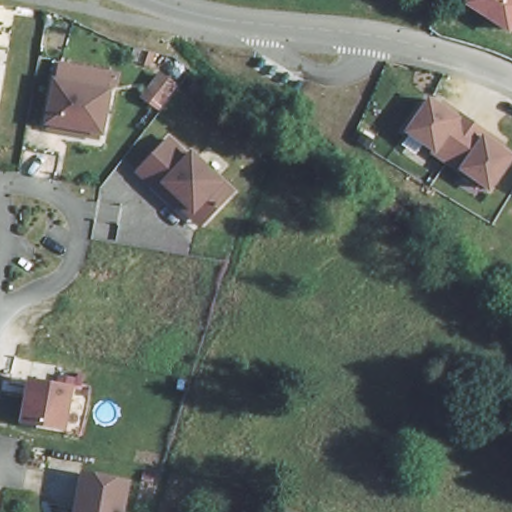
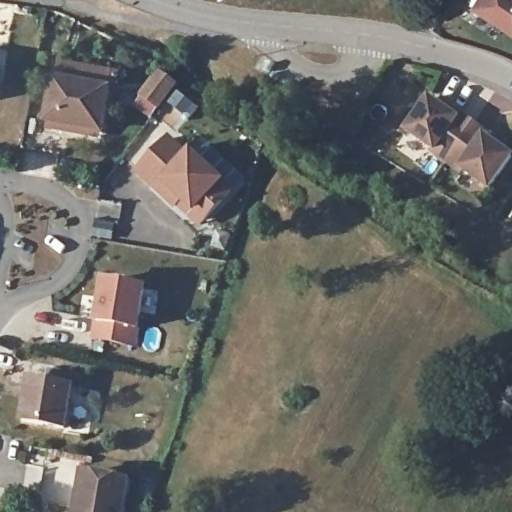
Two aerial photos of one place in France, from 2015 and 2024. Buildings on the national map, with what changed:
unchanged [(464,4),(466,0),(512,0),(512,30),(510,33),(464,4)]
unchanged [(61,124),(46,121),(55,74),(110,85),(101,127),(100,131),(61,124)]
unchanged [(489,192),(404,131),(427,97),(443,106),(446,102),(509,145),(505,149),(512,155),(512,159),(489,192)]
unchanged [(181,196),(178,198),(143,163),(175,132),(193,150),(196,146),(235,185),(207,213),(203,218),(181,196)]
new [(141,281),(133,328),(138,329),(136,348),(88,341),(91,320),(89,320),(95,274),(141,281)]
unchanged [(27,376),(55,381),(57,373),(75,377),(65,431),(18,422),(27,376)]
unchanged [(133,480),(128,512),(82,512),(90,472),(133,480)]

